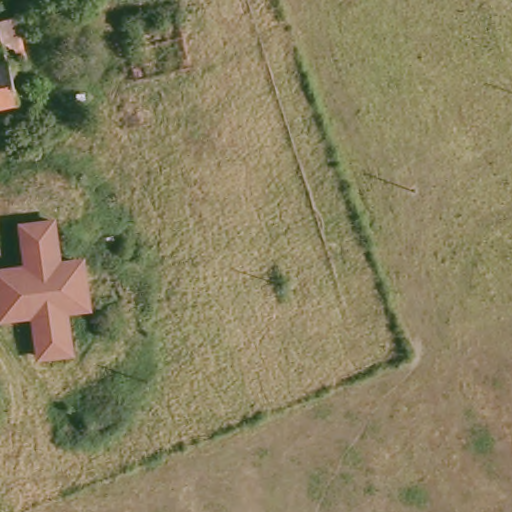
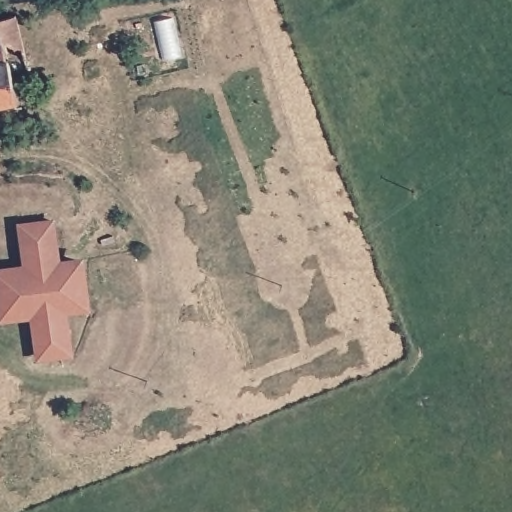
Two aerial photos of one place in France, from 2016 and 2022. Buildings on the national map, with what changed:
unchanged [(0,106),(0,10),(8,8),(23,55),(12,59),(23,100),(0,106)]
unchanged [(55,220),(59,265),(80,263),(84,306),(64,308),(68,354),(36,357),(32,312),(1,314),(0,298),(0,271),(28,268),(23,223),(55,220)]

